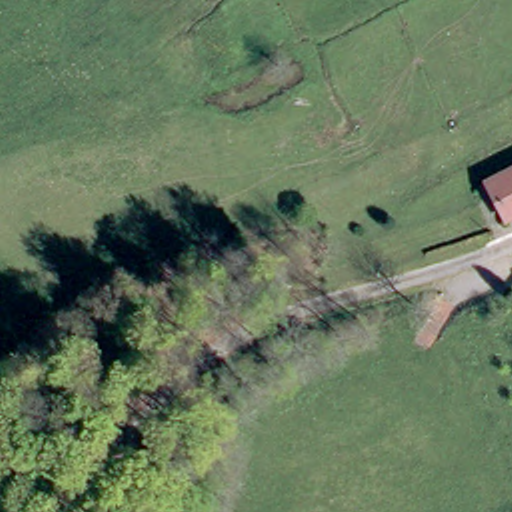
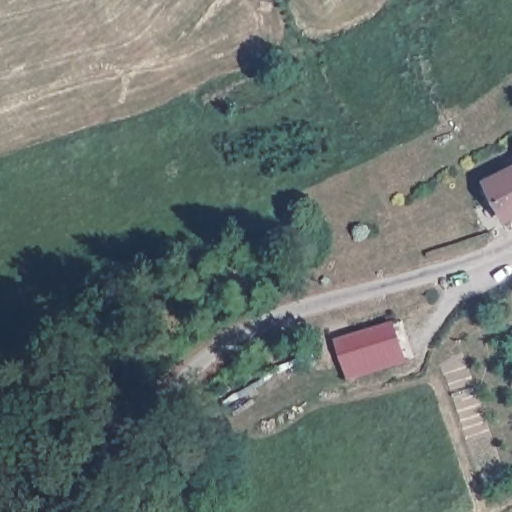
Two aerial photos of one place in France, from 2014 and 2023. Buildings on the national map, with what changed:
unchanged [(512,170),(512,221),(490,183),(512,170)]
new [(407,360),(348,378),(336,335),(392,317),(407,360)]

